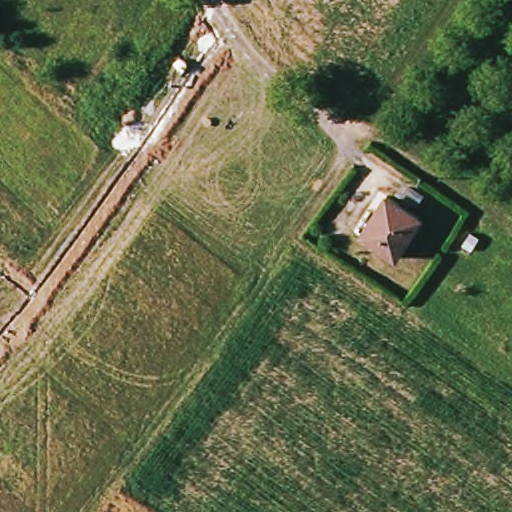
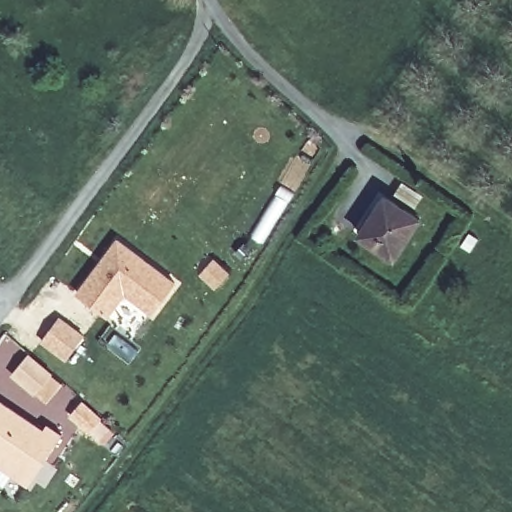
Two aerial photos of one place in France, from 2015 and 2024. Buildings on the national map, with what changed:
unchanged [(421,217),(395,256),(361,234),(388,194),(421,217)]
new [(119,238),(177,280),(152,314),(126,294),(108,319),(76,294),(119,238)]
new [(63,384),(46,404),(37,394),(35,396),(12,376),(30,354),(53,374),(63,384)]
new [(87,399),(108,417),(91,436),(70,417),(87,399)]
new [(44,431),(47,426),(62,436),(30,486),(0,466),(0,402),(44,431)]

